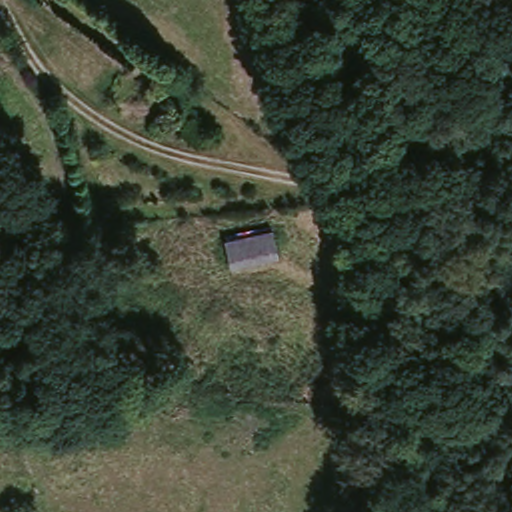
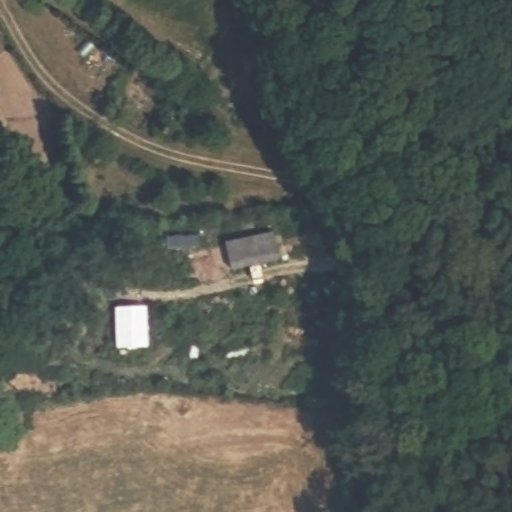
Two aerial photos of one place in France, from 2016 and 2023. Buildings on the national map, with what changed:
unchanged [(280,259),(231,273),(225,247),(272,233),(280,259)]

